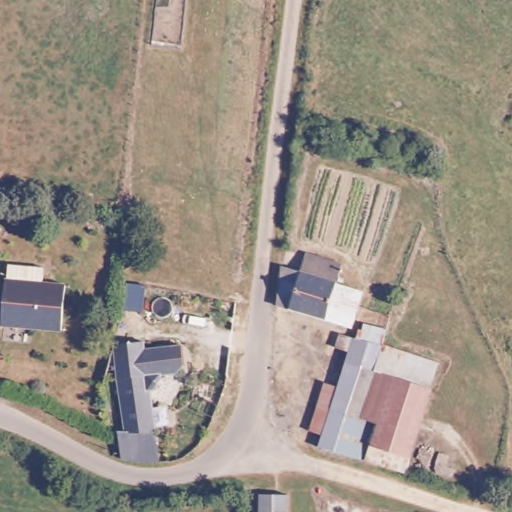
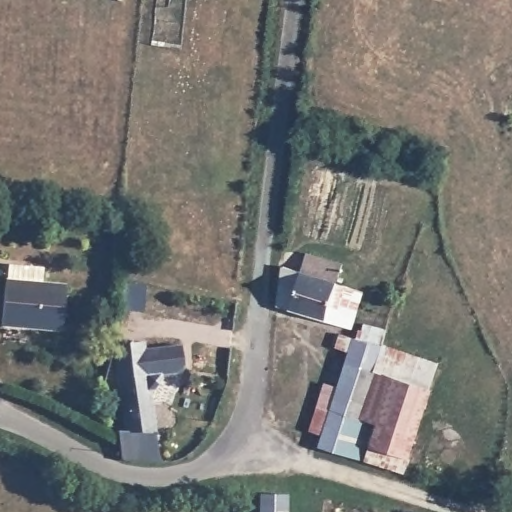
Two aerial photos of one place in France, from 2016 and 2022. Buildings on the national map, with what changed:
unchanged [(285,303),(271,297),(282,260),(286,262),(299,266),(306,247),(358,266),(342,322),(285,303)]
unchanged [(57,326),(0,320),(0,272),(2,259),(40,263),(39,275),(60,277),(65,277),(62,326),(57,326)]
unchanged [(315,422),(327,381),(341,385),(353,345),(340,342),(346,322),(359,326),(370,328),(374,313),(396,320),(390,340),(356,457),(326,447),(326,436),(312,431),(315,422)]
unchanged [(433,352),(402,463),(400,470),(394,469),(356,457),(390,340),(433,352)]
unchanged [(150,373),(144,374),(117,377),(114,347),(146,342),(147,347),(181,343),(186,367),(178,376),(162,377),(162,388),(151,390),(150,373)]
unchanged [(156,451),(120,452),(117,439),(117,423),(121,422),(117,377),(144,374),(150,373),(156,448),(156,451)]
unchanged [(279,512),(252,512),(252,493),(279,493),(279,512)]

